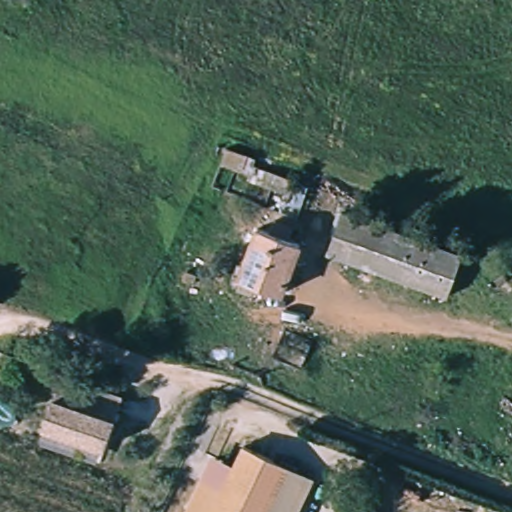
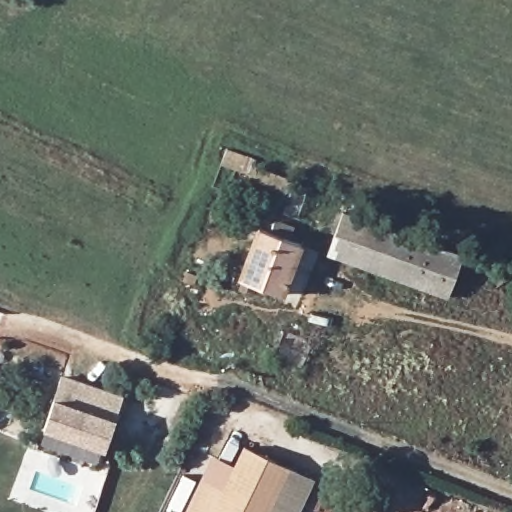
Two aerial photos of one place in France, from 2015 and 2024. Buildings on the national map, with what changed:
unchanged [(268,146),(264,152),(320,173),(317,180),(311,177),(307,187),(229,158),(237,134),(268,146)]
unchanged [(442,297),(325,251),(341,206),(462,249),(442,297)]
unchanged [(304,242),(286,292),(240,276),(260,225),(304,242)]
unchanged [(104,452),(42,431),(60,380),(121,401),(104,452)]
unchanged [(300,512),(185,512),(210,453),(234,463),(244,445),(315,478),(300,512)]

